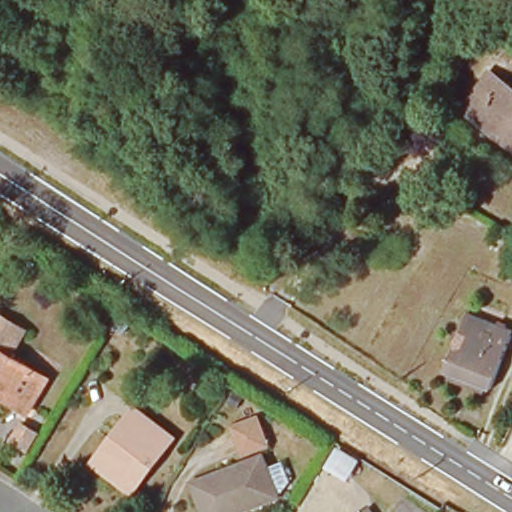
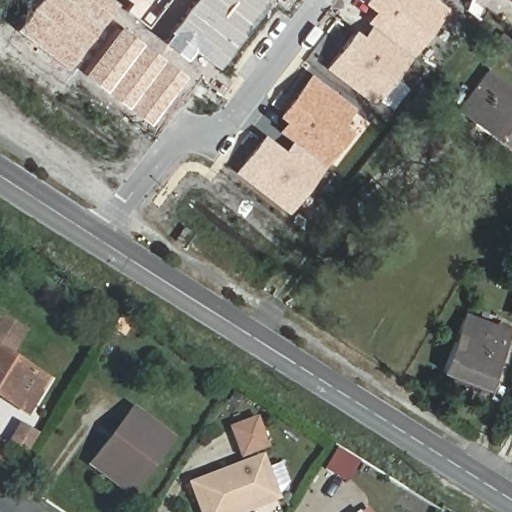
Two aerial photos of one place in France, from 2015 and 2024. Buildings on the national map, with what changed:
new [(66,68),(15,29),(37,0),(113,0),(117,3),(66,68)]
new [(122,10),(128,1),(126,0),(165,0),(145,26),(122,10)]
new [(263,0),(265,2),(216,66),(192,48),(185,60),(164,42),(170,33),(168,31),(192,0),(263,0)]
new [(367,0),(438,0),(450,9),(375,105),(326,69),(356,30),(363,35),(370,26),(367,23),(375,11),(365,3),(367,0)]
new [(509,0),(512,0),(512,7),(507,5),(509,0)]
new [(148,124),(82,74),(118,26),(184,75),(148,124)]
unchanged [(512,147),(461,109),(488,72),(512,89),(512,147)]
new [(344,126),(351,131),(288,215),(235,173),(263,134),(285,150),(292,141),(278,131),(285,121),(280,116),(311,75),(355,108),(344,126)]
unchanged [(111,316),(97,338),(86,331),(100,309),(111,316)]
unchanged [(512,331),(512,332),(491,390),(445,372),(466,314),(512,331)]
unchanged [(25,330),(10,356),(49,380),(31,410),(0,391),(0,315),(25,330)]
unchanged [(121,317),(131,323),(123,336),(114,330),(121,317)]
unchanged [(123,488),(90,464),(133,408),(174,438),(155,462),(147,456),(123,488)]
unchanged [(257,423),(267,450),(242,460),(232,432),(257,423)]
unchanged [(20,424),(36,434),(26,451),(10,441),(20,424)]
unchanged [(280,502),(253,512),(201,512),(191,488),(262,461),(280,502)]

